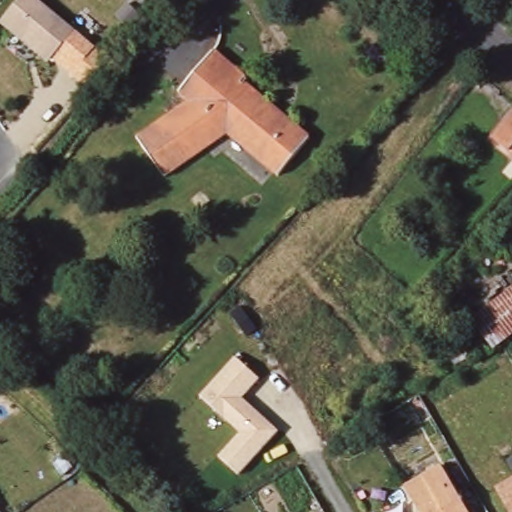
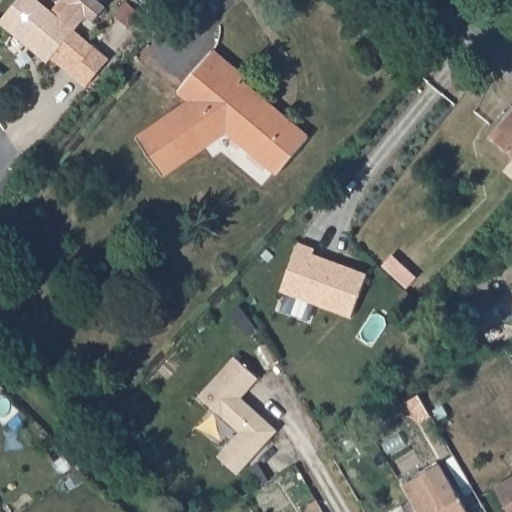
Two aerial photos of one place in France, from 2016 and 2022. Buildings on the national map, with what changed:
unchanged [(2,23),(21,0),(43,0),(76,28),(50,62),(2,23)]
unchanged [(112,57),(86,89),(50,62),(76,28),(112,57)]
unchanged [(194,103),(178,92),(212,50),(247,80),(240,87),(308,140),(284,169),(225,125),(211,135),(219,144),(166,177),(142,142),(194,103)]
unchanged [(512,115),(512,153),(493,137),(512,115)]
new [(295,244),(311,250),(309,255),(364,275),(348,318),(277,292),(295,244)]
unchanged [(512,293),(512,334),(489,347),(472,320),(512,293)]
unchanged [(219,453),(239,431),(200,395),(234,356),(257,377),(242,396),(278,428),(241,473),(219,453)]
unchanged [(441,462),(470,512),(421,512),(405,486),(441,462)]
unchanged [(512,479),(512,512),(511,512),(497,487),(512,479)]

